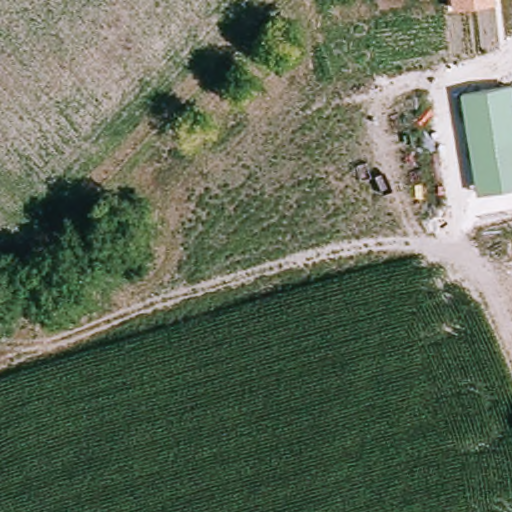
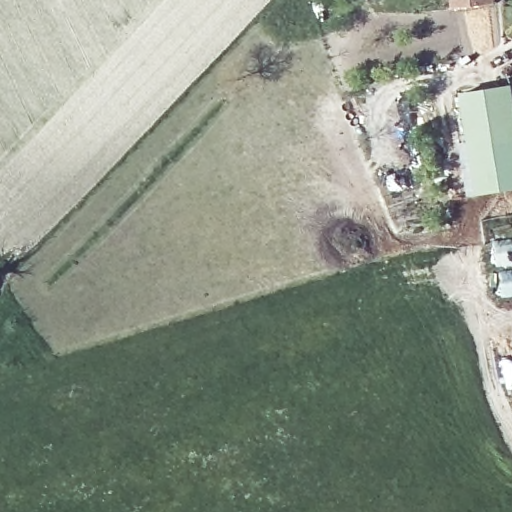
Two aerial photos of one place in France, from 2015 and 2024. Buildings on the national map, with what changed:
unchanged [(496,1),(453,8),(452,0),(496,0),(496,1)]
unchanged [(512,189),(476,195),(460,94),(512,85),(512,189)]

